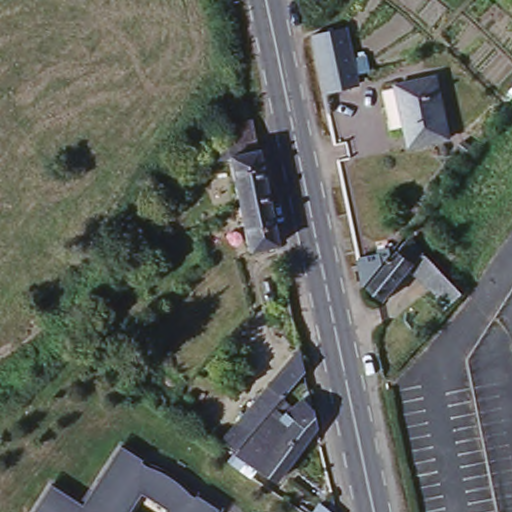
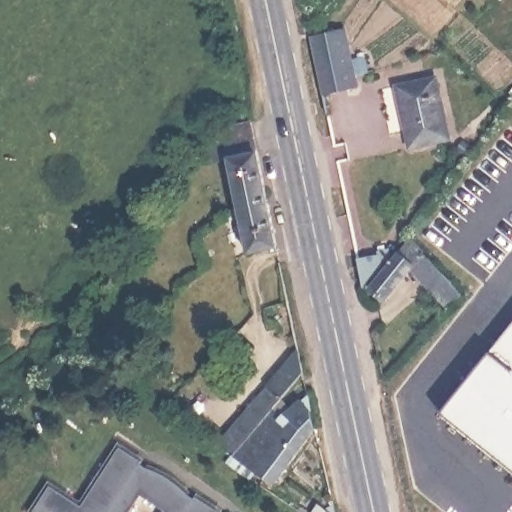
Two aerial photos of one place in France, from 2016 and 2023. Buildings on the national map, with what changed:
unchanged [(371,69),(358,72),(360,83),(326,91),(314,36),(349,29),(355,57),(367,54),(371,69)]
unchanged [(445,137),(407,145),(401,109),(396,86),(402,85),(431,78),(445,137)]
unchanged [(227,137),(225,126),(250,121),(277,245),(251,251),(231,155),(215,159),(212,142),(227,137)]
unchanged [(412,269),(385,300),(369,286),(396,254),(410,239),(465,287),(462,291),(455,299),(451,304),(422,278),(412,269)]
unchanged [(380,254),(380,249),(389,245),(392,241),(392,250),(391,252),(362,284),(357,258),(380,254)]
new [(512,326),(512,478),(442,420),(512,326)]
unchanged [(274,380),(303,342),(303,343),(309,366),(287,391),(286,393),(239,448),(224,438),(274,380)]
unchanged [(280,476),(270,469),(261,464),(256,473),(231,457),(239,448),(286,393),(295,404),(313,389),(321,422),(280,476)]
unchanged [(45,483),(80,503),(117,446),(216,509),(214,512),(27,512),(45,483)]
unchanged [(318,505),(328,512),(313,512),(318,505)]

